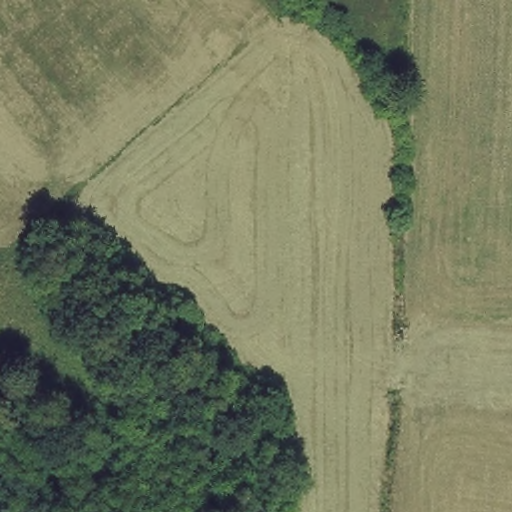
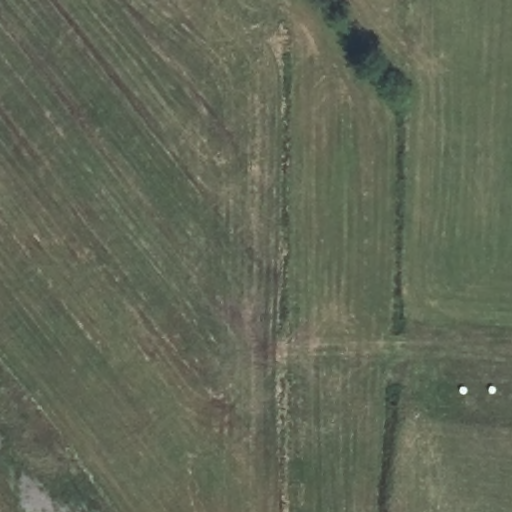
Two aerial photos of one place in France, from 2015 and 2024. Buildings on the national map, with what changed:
[]

